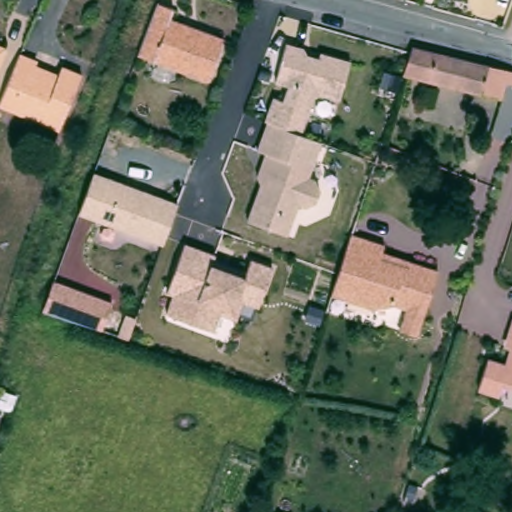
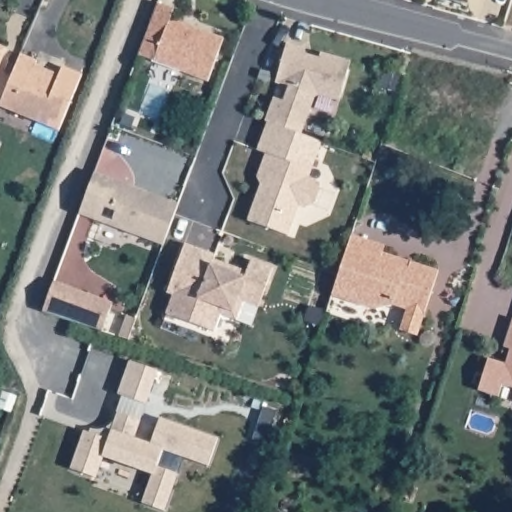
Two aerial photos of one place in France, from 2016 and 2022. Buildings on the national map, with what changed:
unchanged [(177,9),(174,19),(230,40),(215,82),(144,56),(164,4),(177,9)]
unchanged [(502,100),(390,71),(397,40),(492,65),(510,70),(502,100)]
unchanged [(303,48),(301,54),(316,58),(317,51),(348,59),(338,100),(312,94),(300,135),(263,122),(270,99),(281,101),(285,84),(275,82),(286,44),(303,48)]
unchanged [(10,50),(0,76),(0,45),(10,50)]
unchanged [(41,62),(38,71),(62,80),(70,64),(89,71),(66,125),(62,124),(54,145),(25,134),(33,112),(7,101),(25,55),(41,62)]
unchanged [(248,217),(259,180),(255,176),(265,150),(255,146),(263,122),(300,135),(318,141),(308,175),(315,177),(321,187),(316,202),(306,205),(297,204),(288,233),(248,217)]
unchanged [(160,246),(92,221),(75,215),(90,177),(90,174),(107,180),(175,205),(160,246)]
unchanged [(366,256),(395,264),(423,272),(410,317),(378,308),(360,312),(317,300),(335,239),(368,249),(366,256)]
unchanged [(168,311),(175,293),(169,291),(184,240),(216,252),(215,257),(246,268),(251,257),(276,266),(259,306),(245,301),(239,317),(217,311),(211,326),(168,311)]
unchanged [(115,297),(104,329),(75,319),(44,308),(55,278),(115,297)]
unchanged [(487,398),(467,391),(480,359),(498,365),(507,339),(501,337),(508,318),(512,320),(512,395),(492,387),(487,398)]
new [(105,437),(114,410),(120,393),(115,391),(126,358),(155,368),(143,401),(137,418),(131,436),(147,441),(156,415),(215,436),(205,462),(180,454),(161,508),(139,500),(150,471),(100,454),(92,475),(67,466),(80,428),(105,437)]
new [(258,401),(278,408),(268,441),(247,435),(258,401)]
unchanged [(512,406),(512,408),(511,407),(512,406)]
new [(92,475),(100,454),(150,471),(139,500),(90,483),(92,475)]

